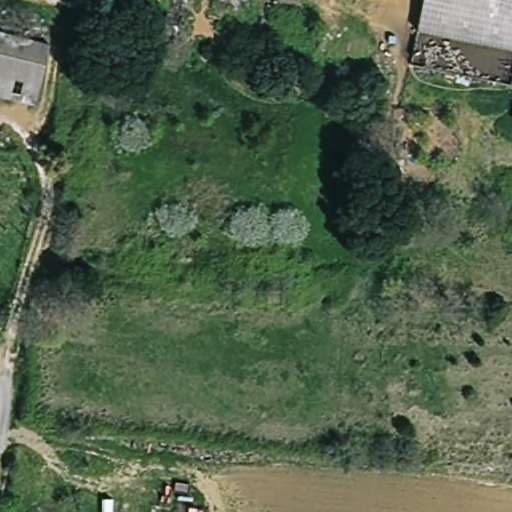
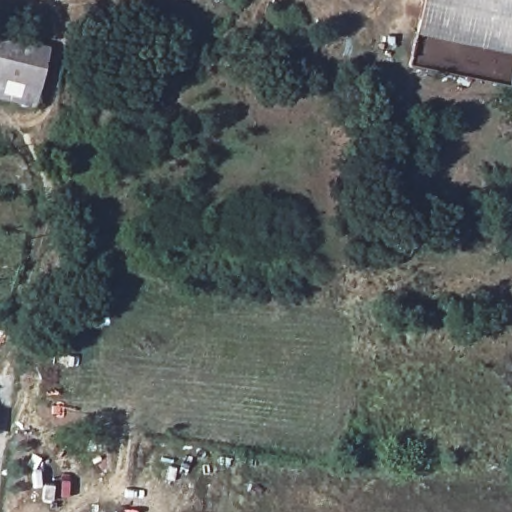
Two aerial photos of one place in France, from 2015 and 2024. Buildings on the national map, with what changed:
unchanged [(427,0),(512,0),(512,48),(421,27),(427,0)]
unchanged [(48,43),(41,86),(0,78),(0,34),(48,43)]
unchanged [(37,105),(0,98),(0,78),(41,86),(37,105)]

